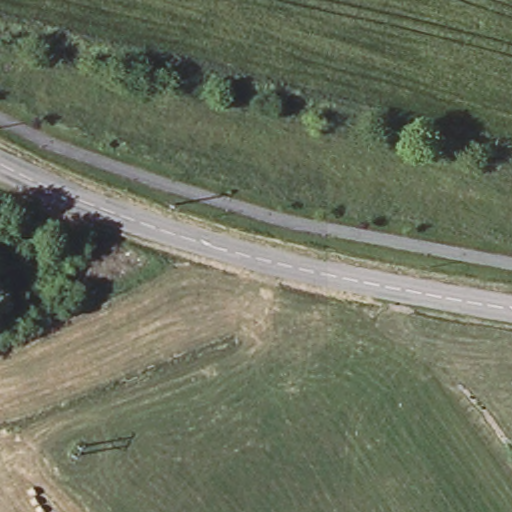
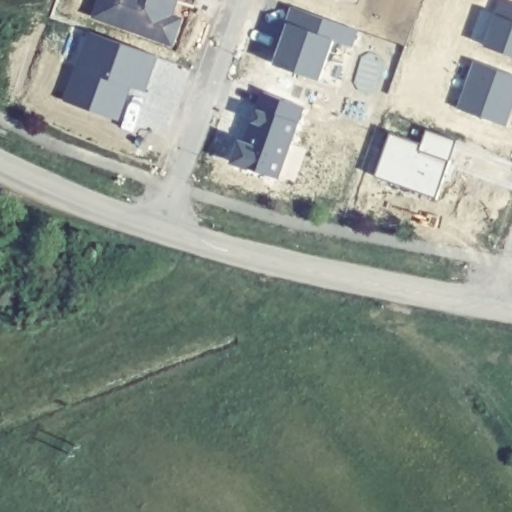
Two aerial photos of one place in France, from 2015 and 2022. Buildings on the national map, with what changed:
new [(97,0),(178,0),(172,16),(183,20),(173,46),(91,19),(97,0)]
new [(512,4),(512,59),(482,47),(499,0),(502,0),(512,4)]
new [(284,54),(286,55),(290,43),(288,42),(294,26),(291,25),(297,9),(363,33),(357,49),(339,42),(325,83),(280,67),(284,54)]
new [(122,121),(70,103),(95,33),(161,57),(148,93),(135,88),(131,98),(122,121)]
new [(480,64),(512,76),(512,126),(511,129),(463,111),(480,64)]
new [(250,145),(257,125),(268,94),(308,109),(282,181),(237,164),(245,144),(250,145)]
new [(395,135),(427,146),(431,132),(462,143),(441,201),(380,179),(395,135)]

